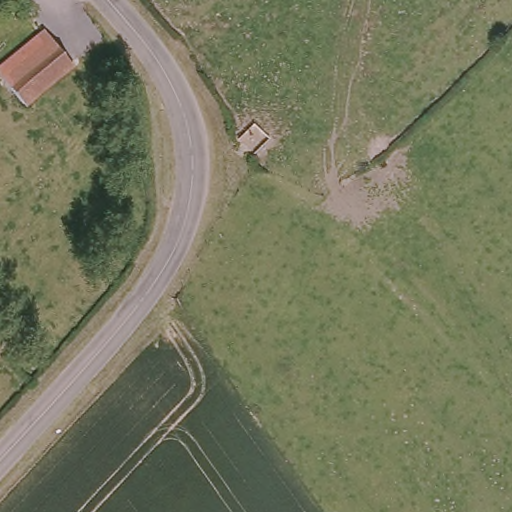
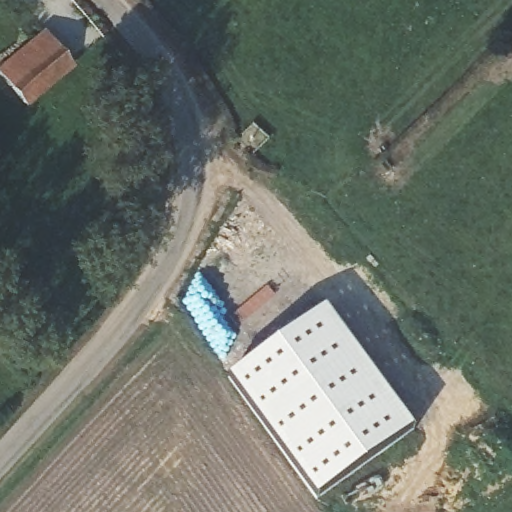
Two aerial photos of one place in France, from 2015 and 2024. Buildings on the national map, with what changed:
unchanged [(52,37),(72,61),(19,102),(0,80),(0,79),(40,47),(52,37)]
new [(414,430),(315,498),(229,376),(327,307),(414,430)]

